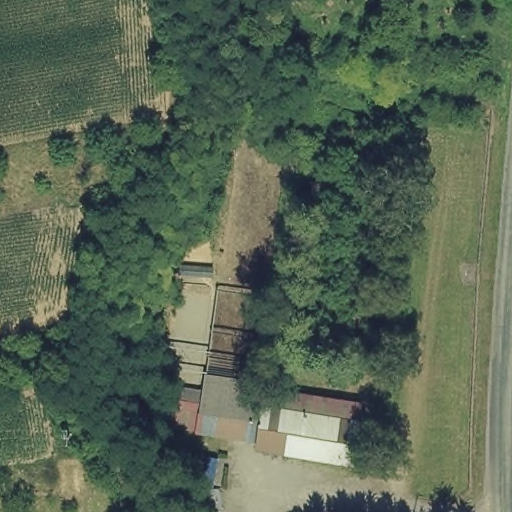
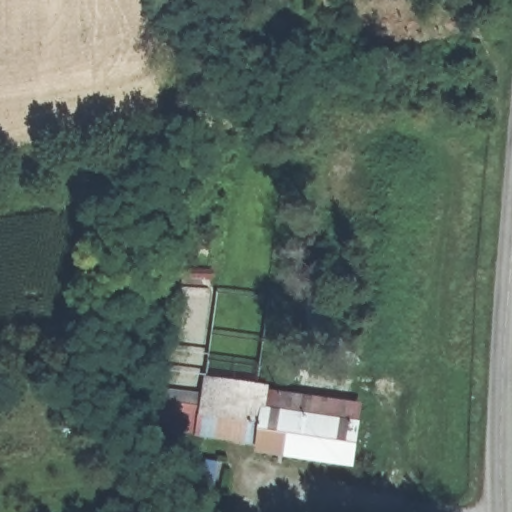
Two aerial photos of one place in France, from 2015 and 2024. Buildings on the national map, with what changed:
unchanged [(266,387),(359,404),(355,422),(350,474),(250,465),(251,455),(160,436),(157,435),(159,421),(164,397),(197,401),(203,377),(266,387)]

